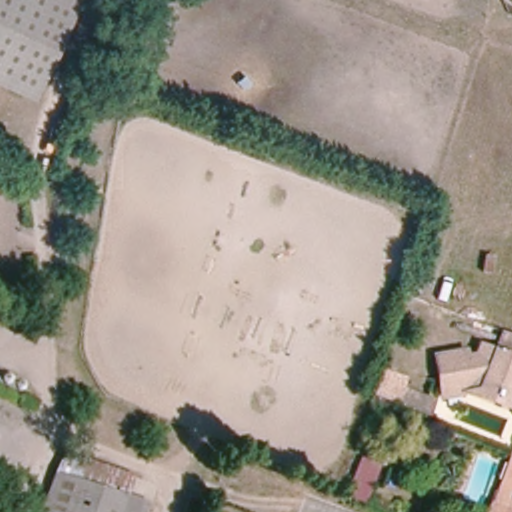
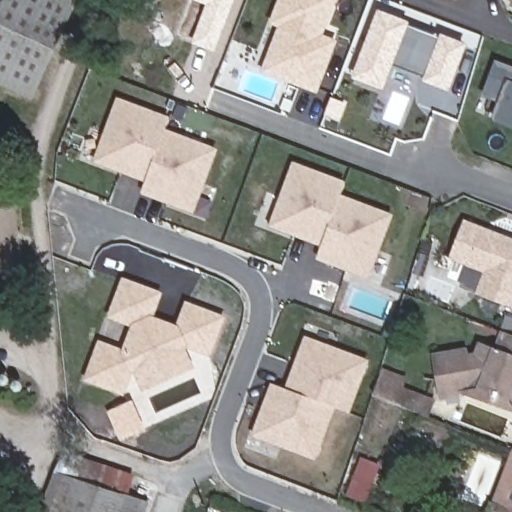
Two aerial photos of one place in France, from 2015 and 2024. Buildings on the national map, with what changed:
unchanged [(0,85),(0,0),(82,0),(35,101),(0,85)]
new [(192,40),(206,5),(193,0),(234,0),(215,49),(192,40)]
new [(282,26),(273,22),(282,0),(334,0),(319,37),(334,43),(316,90),(300,84),(265,71),(271,55),(282,26)]
new [(463,46),(447,88),(427,80),(427,78),(391,64),(382,87),(355,77),(380,14),(463,46)]
new [(512,66),(512,127),(493,119),(500,102),(484,95),(498,61),(498,60),(512,66)]
new [(144,191),(147,184),(96,165),(120,101),(170,120),(165,134),(215,153),(193,210),(144,191)]
new [(346,184),(341,197),(391,216),(369,275),(319,256),(324,243),(273,225),(295,165),(346,184)]
new [(512,240),(512,307),(477,293),(486,270),(450,257),(464,221),(512,240)]
new [(83,381),(99,340),(122,349),(131,327),(108,318),(122,277),(164,292),(154,316),(177,324),(185,301),(226,317),(210,356),(187,348),(186,350),(195,369),(142,391),(135,373),(133,373),(124,396),(83,381)]
unchanged [(492,361),(504,331),(512,334),(512,407),(506,400),(481,391),(460,395),(458,385),(441,388),(436,356),(466,350),(467,356),(477,355),(492,361)]
new [(349,412),(334,406),(315,457),(257,435),(275,384),(289,389),(308,339),(367,361),(349,412)]
unchanged [(397,405),(403,389),(433,401),(428,416),(397,405)]
unchanged [(56,473),(64,452),(134,476),(127,497),(56,473)]
unchanged [(512,462),(512,512),(494,512),(512,462)]
unchanged [(56,473),(127,497),(148,504),(146,512),(42,512),(56,473)]

